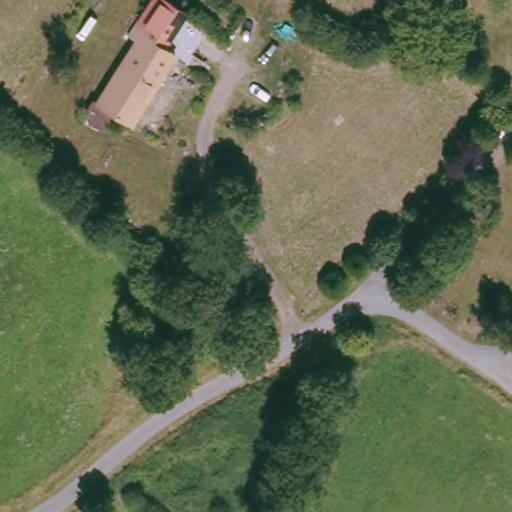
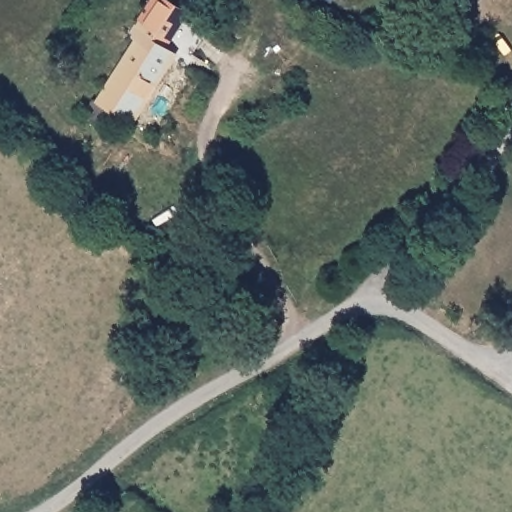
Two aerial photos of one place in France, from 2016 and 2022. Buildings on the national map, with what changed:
unchanged [(169,47),(177,54),(134,125),(100,102),(137,40),(130,35),(151,0),(163,0),(187,16),(169,47)]

